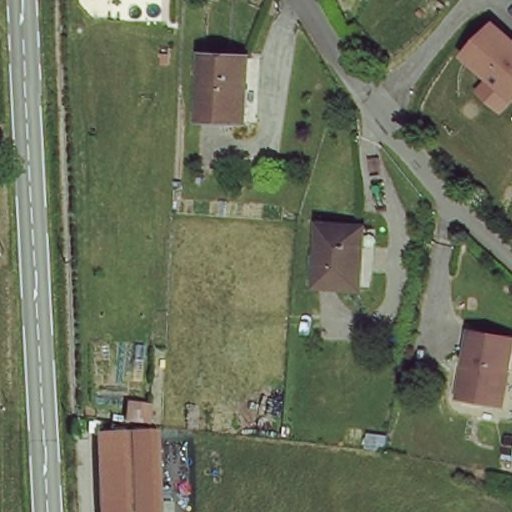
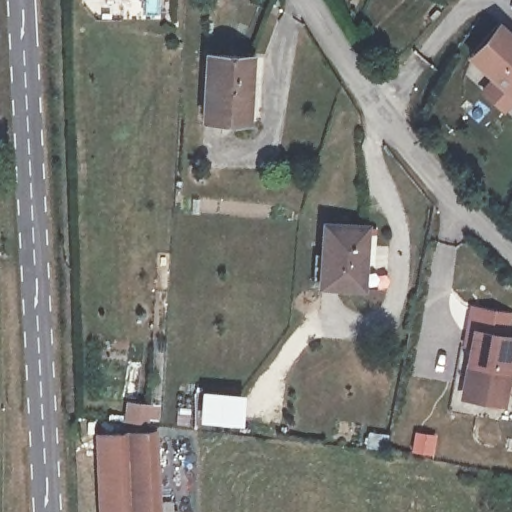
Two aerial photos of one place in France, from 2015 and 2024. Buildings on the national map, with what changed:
unchanged [(512,105),(502,115),(478,91),(488,79),(465,57),(499,22),(512,33),(512,105)]
unchanged [(204,121),(206,58),(249,58),(247,122),(204,121)]
unchanged [(363,232),(358,291),(316,289),(321,230),(363,232)]
unchanged [(512,346),(512,366),(501,412),(464,405),(472,371),(467,365),(474,339),(512,346)]
new [(243,395),(240,425),(198,421),(201,391),(243,395)]
unchanged [(102,432),(157,430),(161,512),(106,512),(102,432)]

